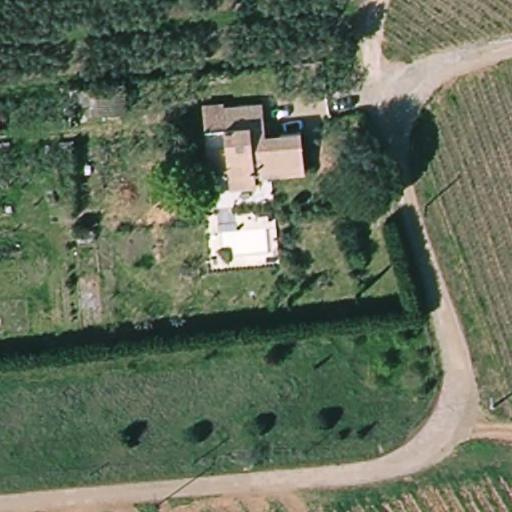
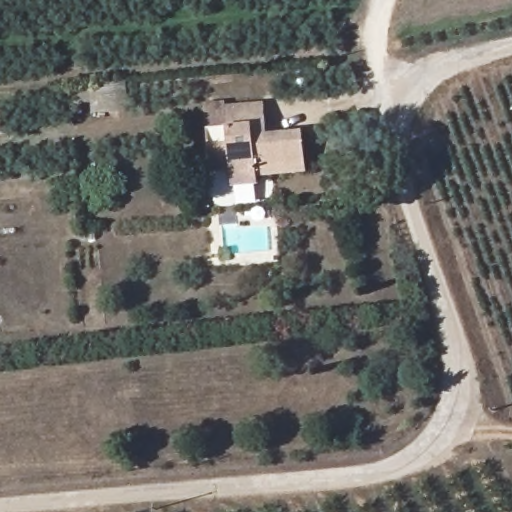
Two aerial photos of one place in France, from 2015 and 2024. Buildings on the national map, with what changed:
unchanged [(208,151),(204,125),(225,122),(222,101),(263,98),(265,128),(302,124),(306,170),(256,174),(258,182),(232,184),(230,172),(210,173),(208,151)]

